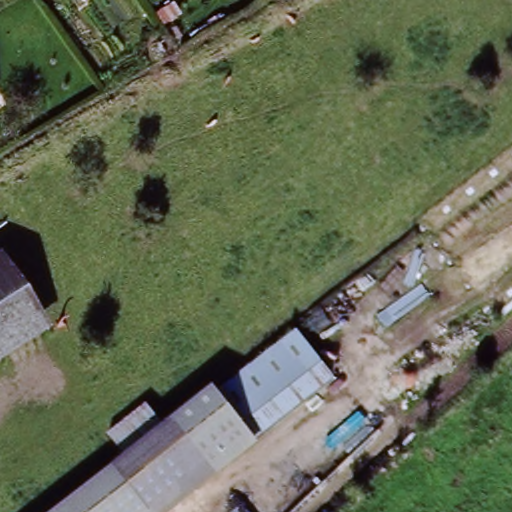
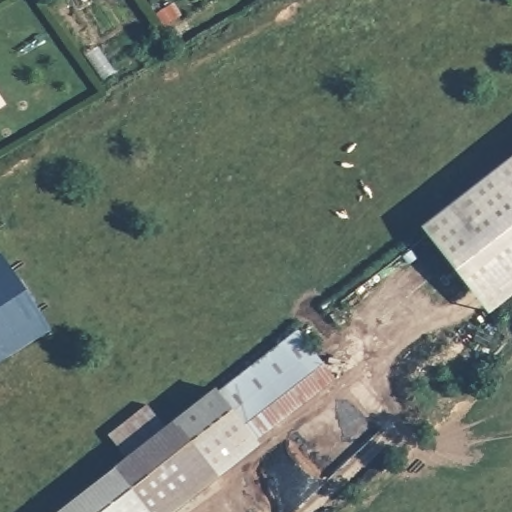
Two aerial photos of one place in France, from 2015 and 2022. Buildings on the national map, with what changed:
new [(512,296),(489,314),(422,228),(512,157),(512,296)]
unchanged [(0,358),(0,251),(49,326),(0,358)]
unchanged [(298,332),(337,382),(280,424),(241,374),(298,332)]
unchanged [(169,512),(155,512),(118,464),(119,463),(191,406),(238,370),(241,374),(274,417),(280,424),(169,512)]
unchanged [(118,464),(155,512),(55,512),(118,464)]

